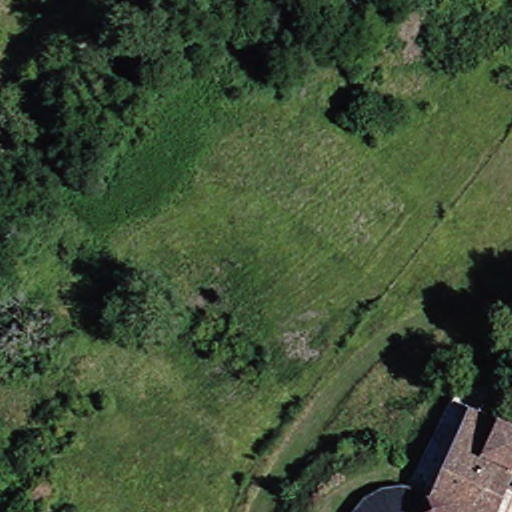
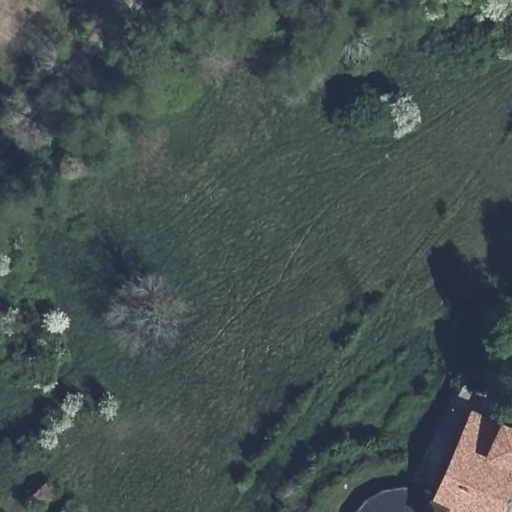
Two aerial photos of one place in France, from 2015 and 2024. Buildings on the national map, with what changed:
unchanged [(443,512),(448,497),(437,493),(437,492),(467,422),(474,403),(512,421),(512,479),(508,488),(501,503),(497,512),(443,512)]
unchanged [(383,487),(395,482),(407,482),(415,482),(425,487),(437,493),(448,497),(443,512),(357,512),(373,493),(383,487)]

